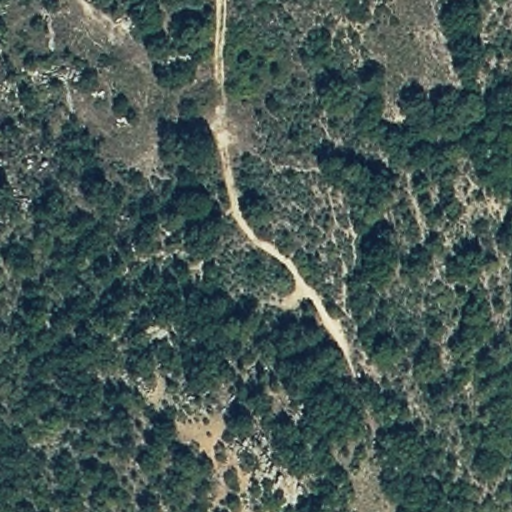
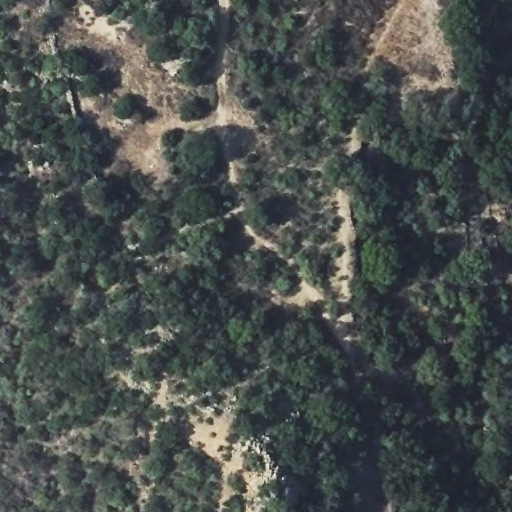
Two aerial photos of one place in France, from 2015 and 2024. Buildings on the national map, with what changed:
[]

